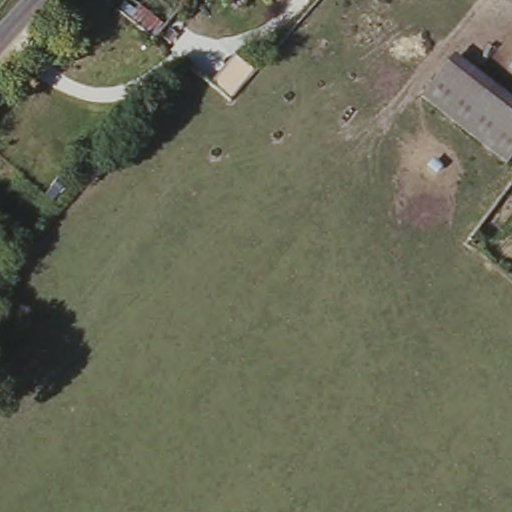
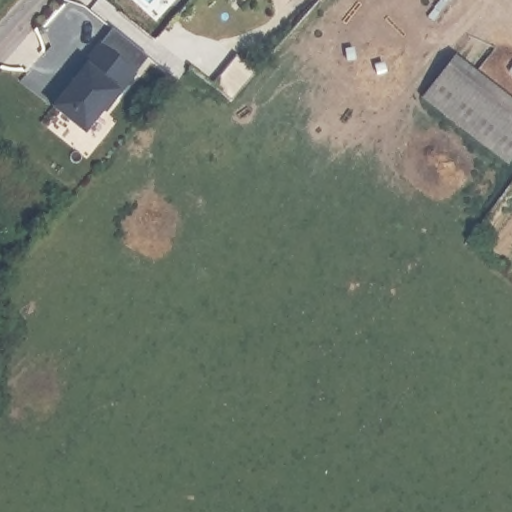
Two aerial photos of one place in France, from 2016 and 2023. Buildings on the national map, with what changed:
new [(50,105),(115,28),(146,55),(83,130),(50,105)]
new [(208,82),(235,53),(253,67),(227,96),(208,82)]
unchanged [(512,157),(506,164),(421,97),(454,55),(512,100),(512,157)]

